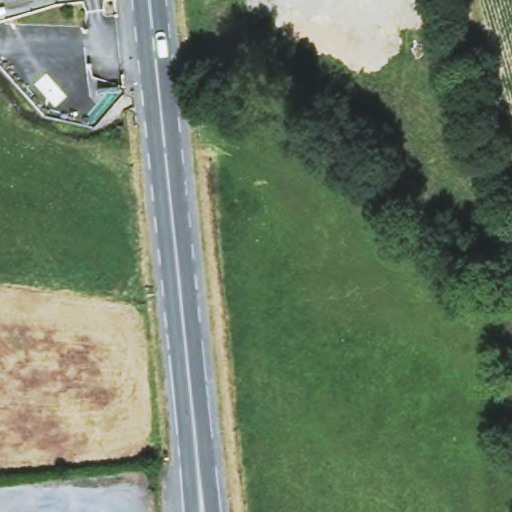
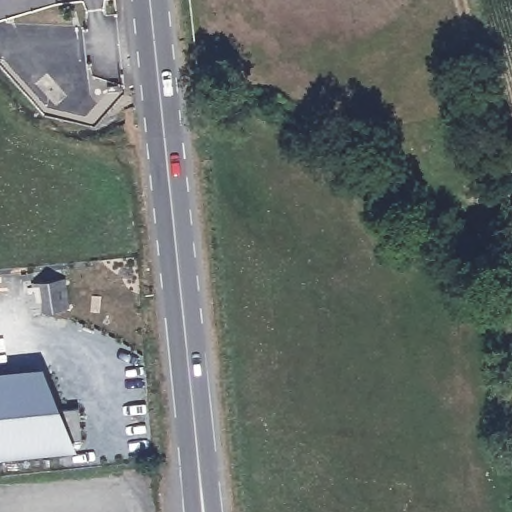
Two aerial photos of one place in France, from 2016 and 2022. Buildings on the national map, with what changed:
new [(57,409),(80,407),(82,440),(70,442),(72,448),(0,455),(0,373),(40,369),(57,409)]

